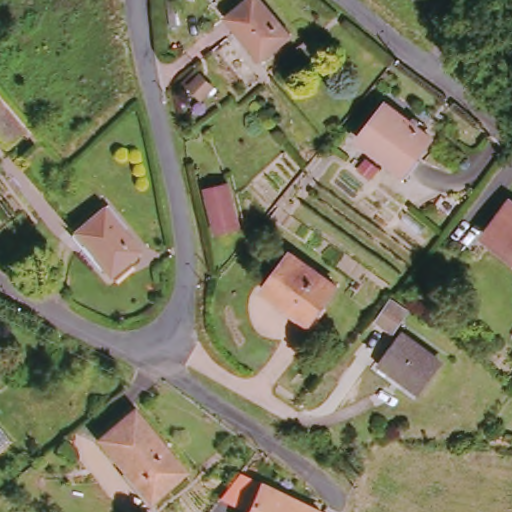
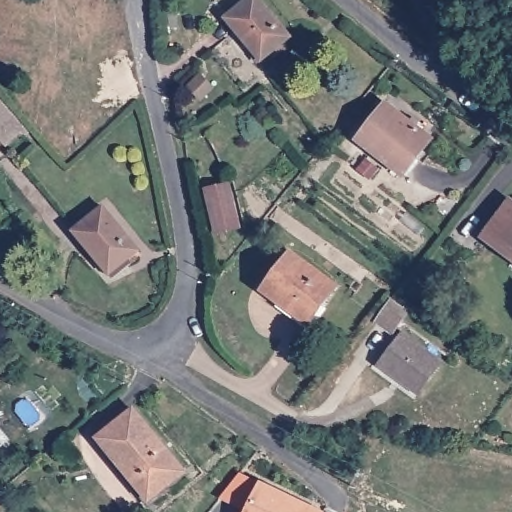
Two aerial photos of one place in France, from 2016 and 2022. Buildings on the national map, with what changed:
unchanged [(259,0),(295,44),(265,65),(231,20),(256,0),(259,0)]
unchanged [(5,103),(36,141),(15,157),(0,138),(0,109),(0,97),(5,103)]
unchanged [(391,105),(436,141),(410,174),(364,140),(391,105)]
unchanged [(235,189),(247,235),(224,240),(213,194),(235,189)]
unchanged [(107,211),(144,255),(115,278),(79,236),(107,211)]
unchanged [(496,239),(512,217),(512,252),(496,239)]
unchanged [(296,251),(340,287),(310,325),(265,290),(296,251)]
unchanged [(393,308),(408,319),(393,340),(379,328),(393,308)]
unchanged [(405,341),(442,370),(421,395),(383,367),(405,341)]
unchanged [(138,412),(189,472),(159,499),(107,440),(138,412)]
unchanged [(226,503),(242,473),(265,485),(322,512),(236,512),(226,503)]

